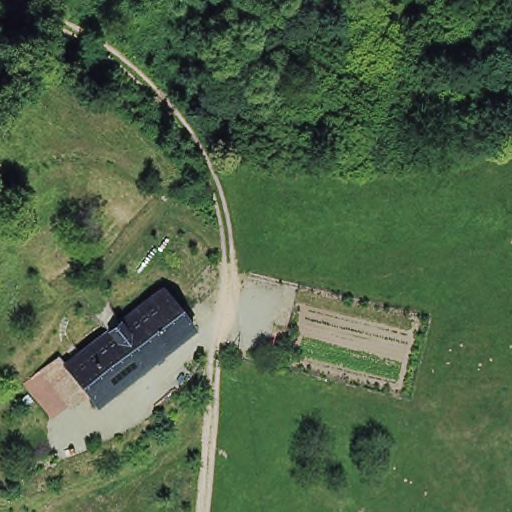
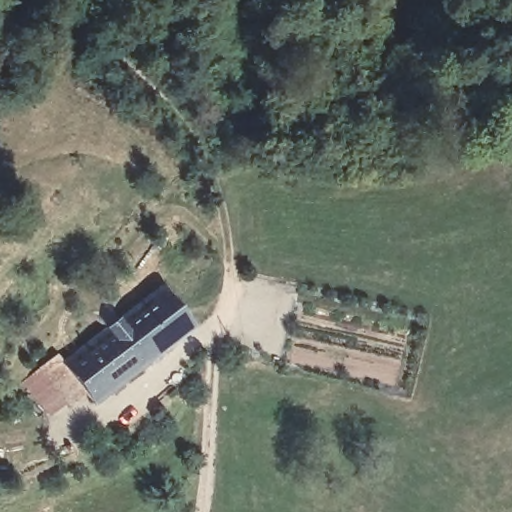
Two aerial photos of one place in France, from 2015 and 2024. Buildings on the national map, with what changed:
unchanged [(37,360),(55,347),(60,353),(159,277),(191,320),(92,395),(83,383),(66,397),(37,360)]

